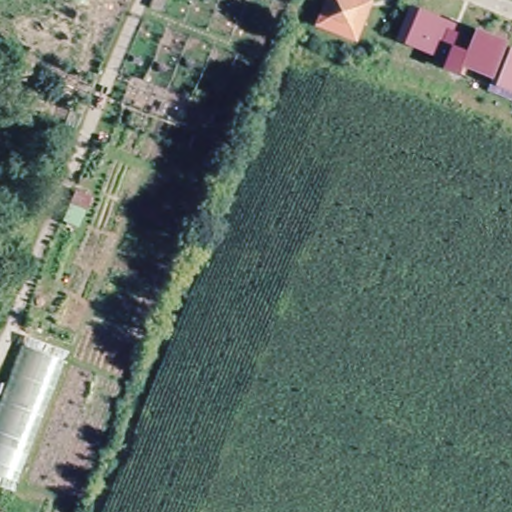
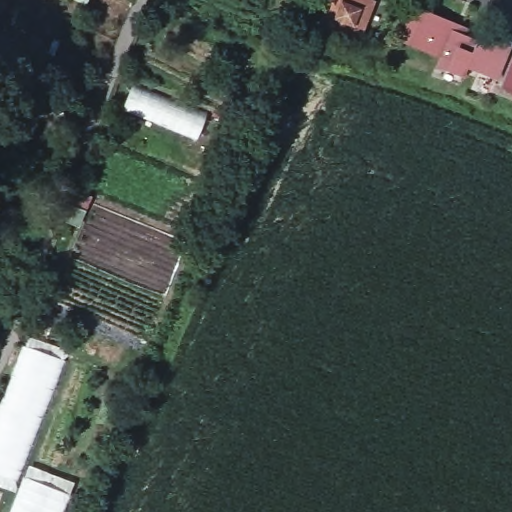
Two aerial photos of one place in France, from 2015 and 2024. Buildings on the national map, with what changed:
unchanged [(330,0),(370,0),(376,2),(358,43),(318,27),(330,0)]
unchanged [(412,6),(458,25),(456,32),(475,38),(479,27),(512,42),(512,44),(511,47),(512,47),(512,101),(489,92),(494,79),(465,67),(462,75),(446,69),(432,63),(434,57),(396,40),(412,6)]
unchanged [(65,361),(17,481),(0,475),(0,400),(22,344),(65,361)]
new [(24,477),(69,495),(62,512),(11,512),(24,477)]

